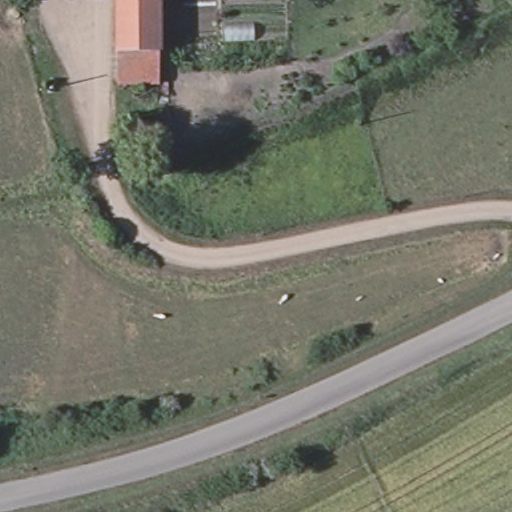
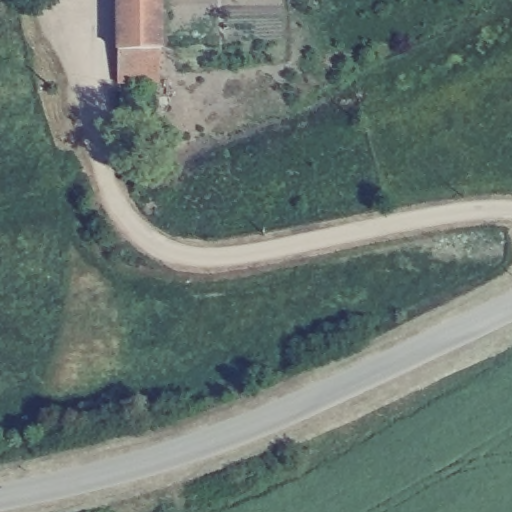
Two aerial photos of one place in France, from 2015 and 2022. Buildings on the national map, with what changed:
unchanged [(110,65),(110,0),(149,0),(149,64),(110,65)]
unchanged [(149,64),(150,97),(111,97),(110,65),(149,64)]

